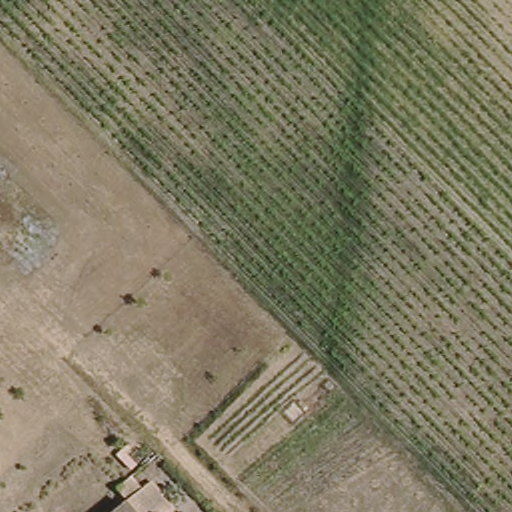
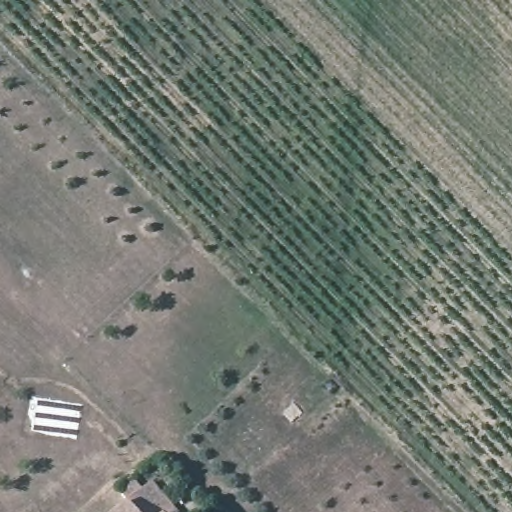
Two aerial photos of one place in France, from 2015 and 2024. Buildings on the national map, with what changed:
unchanged [(123,503),(111,488),(125,476),(139,491),(149,482),(172,512),(113,512),(123,503)]

